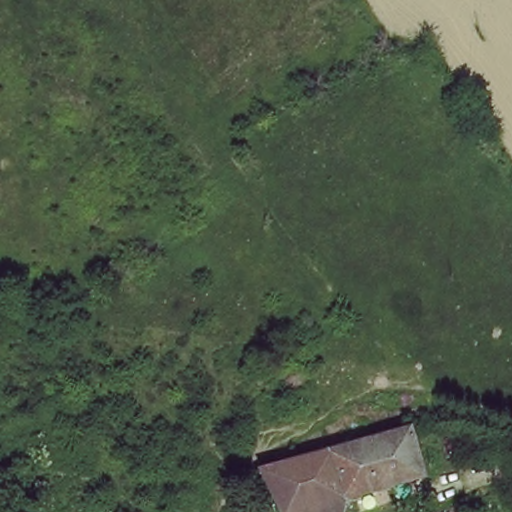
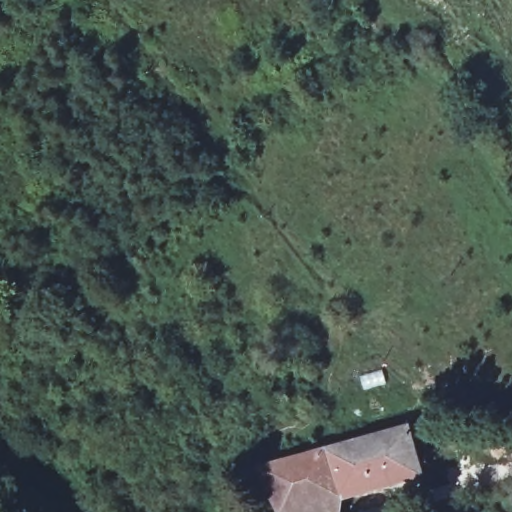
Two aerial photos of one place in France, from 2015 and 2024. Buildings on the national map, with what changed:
unchanged [(326,511),(326,512),(286,512),(276,485),(405,421),(424,463),(326,511)]

